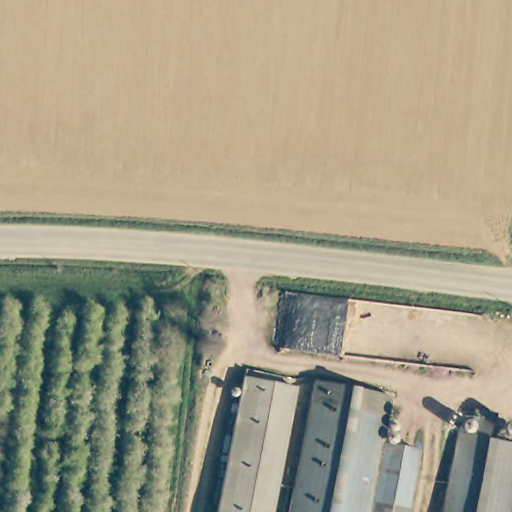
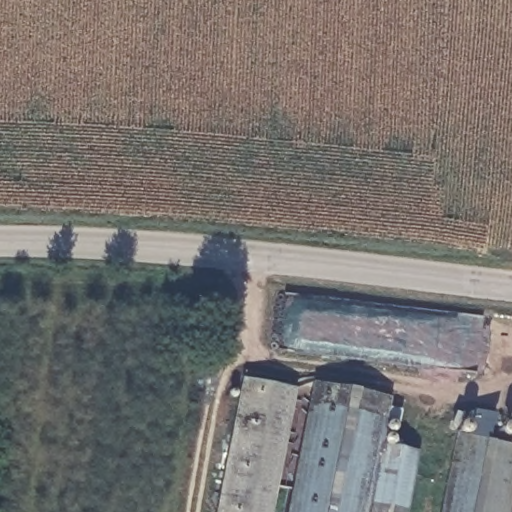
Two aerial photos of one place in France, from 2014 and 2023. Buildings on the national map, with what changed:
unchanged [(241,383),(292,392),(271,512),(218,512),(241,383)]
unchanged [(380,446),(417,454),(406,512),(289,512),(312,386),(389,401),(380,446)]
unchanged [(512,446),(512,488),(507,512),(444,512),(460,434),(468,436),(471,421),(489,425),(486,441),(512,446)]

